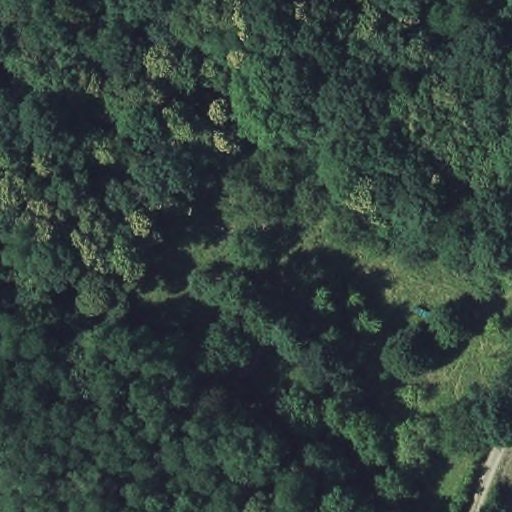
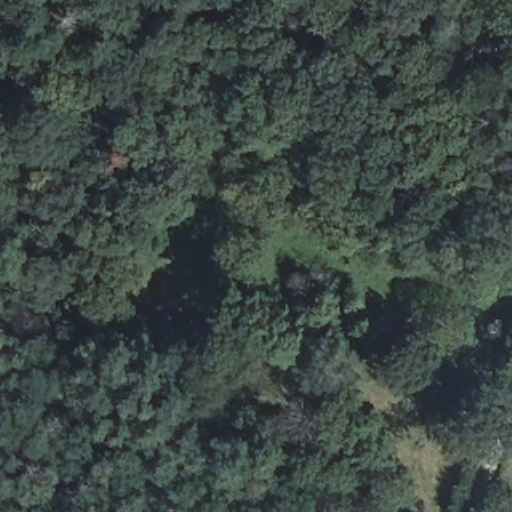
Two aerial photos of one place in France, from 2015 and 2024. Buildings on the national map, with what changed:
[]

